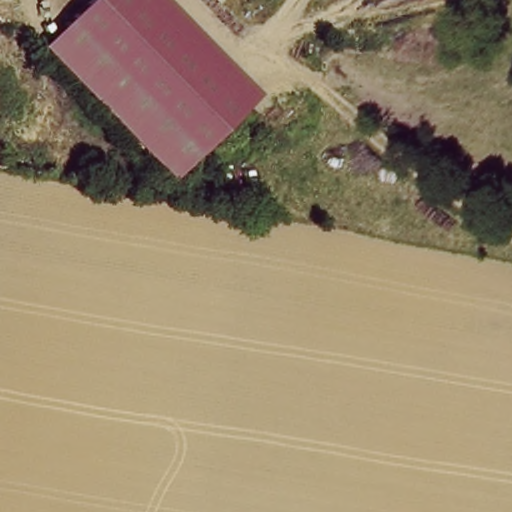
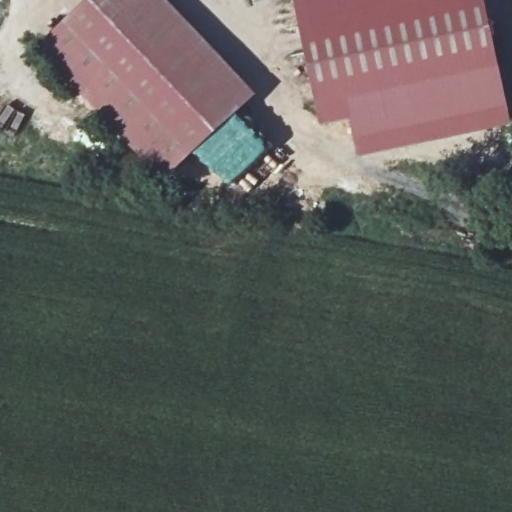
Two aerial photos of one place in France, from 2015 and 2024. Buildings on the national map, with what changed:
unchanged [(255,99),(161,185),(33,49),(88,0),(165,0),(255,99)]
new [(505,88),(323,127),(295,0),(485,0),(505,88)]

